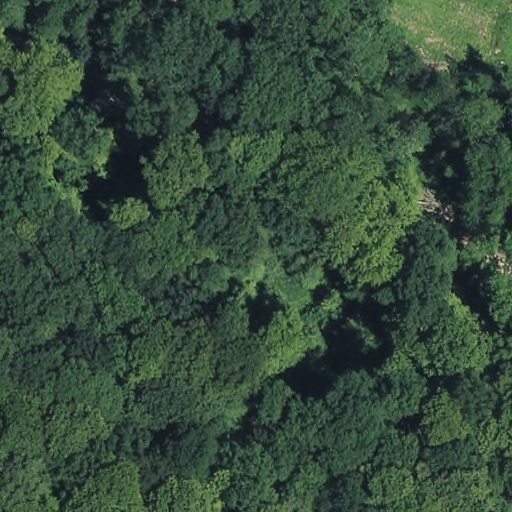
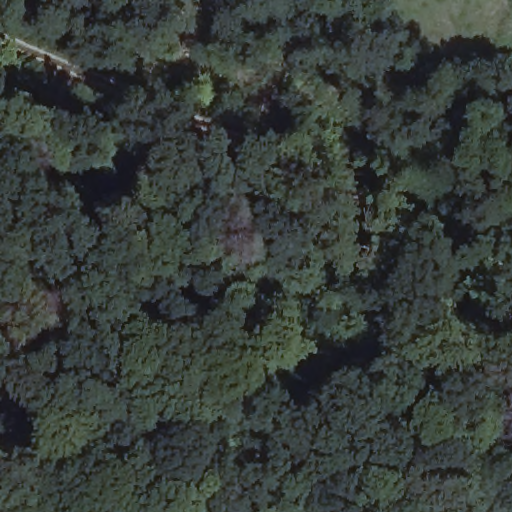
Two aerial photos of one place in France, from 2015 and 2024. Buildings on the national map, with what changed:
[]

